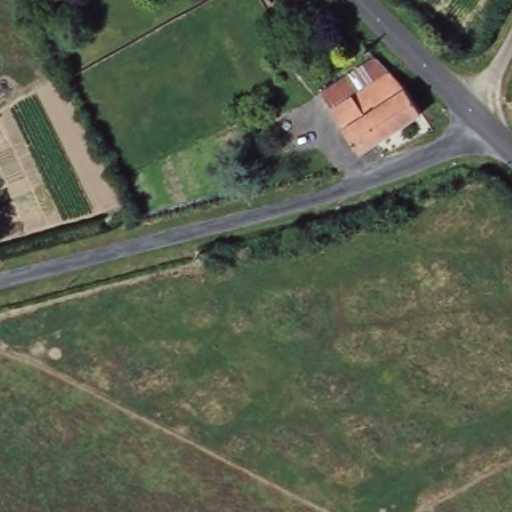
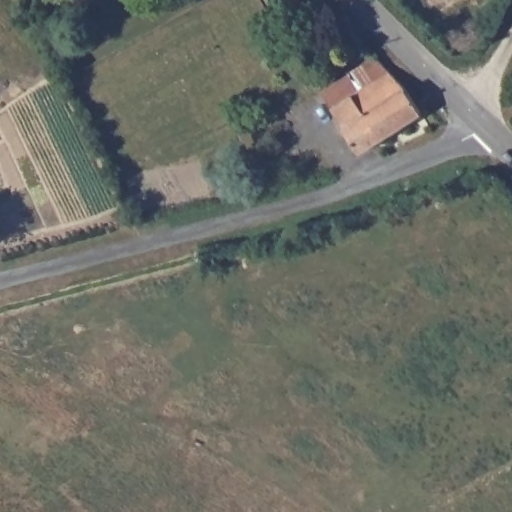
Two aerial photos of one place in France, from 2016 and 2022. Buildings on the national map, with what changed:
unchanged [(298,1),(296,0),(298,0),(298,1)]
unchanged [(421,114),(359,153),(320,92),(374,57),(397,79),(421,114)]

